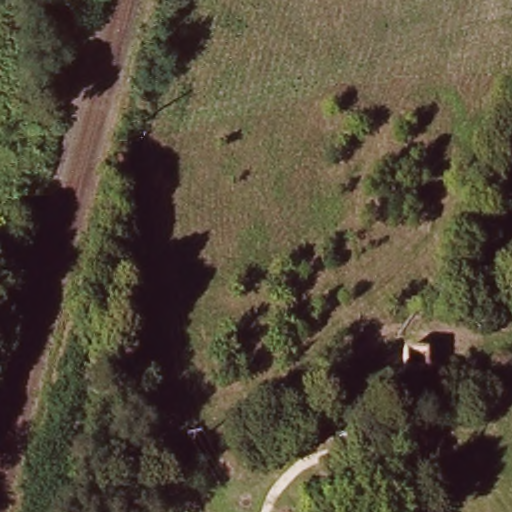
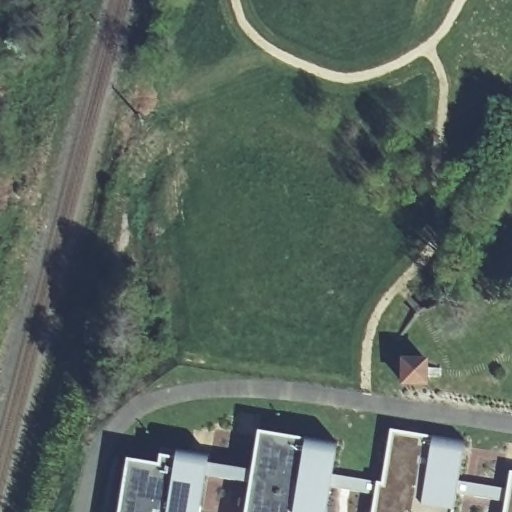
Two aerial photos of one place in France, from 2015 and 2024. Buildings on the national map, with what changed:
new [(428,359),(427,388),(400,387),(400,358),(428,359)]
new [(372,512),(377,482),(380,482),(390,429),(465,442),(452,512),(372,512)]
new [(330,487),(326,512),(245,512),(258,431),(337,444),(332,474),(330,487)]
new [(158,463),(160,455),(176,457),(178,452),(209,457),(199,512),(119,512),(127,459),(158,463)]
new [(510,471),(512,471),(512,512),(503,512),(507,488),(510,471)]

